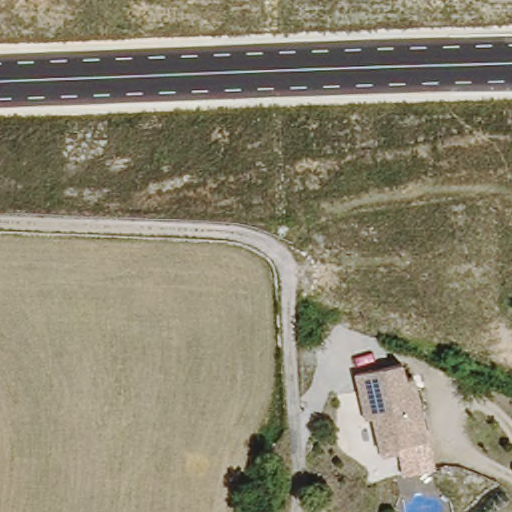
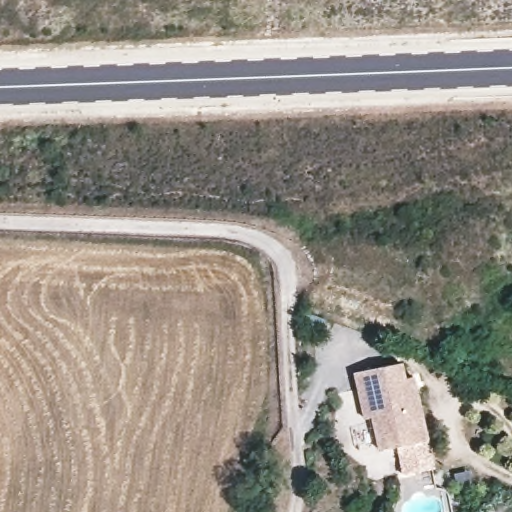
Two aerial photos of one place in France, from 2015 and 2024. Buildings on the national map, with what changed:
unchanged [(402,382),(410,381),(420,445),(398,448),(371,452),(366,419),(358,419),(355,390),(352,373),(399,366),(402,382)]
unchanged [(416,381),(438,468),(402,474),(398,448),(420,445),(410,381),(416,381)]

